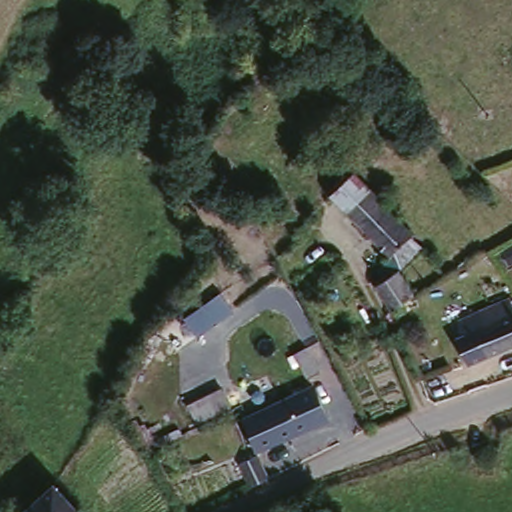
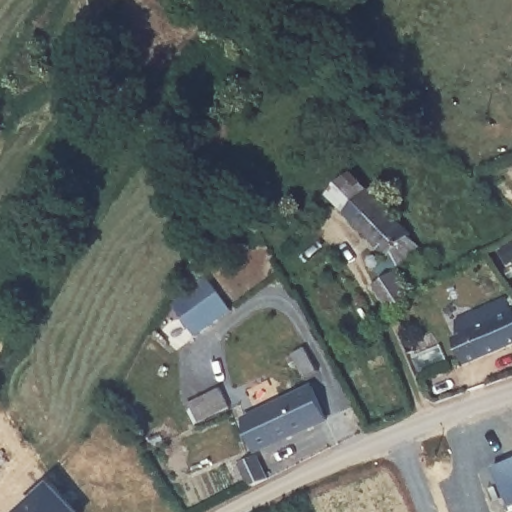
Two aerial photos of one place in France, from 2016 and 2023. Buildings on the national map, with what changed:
unchanged [(377,281),(386,273),(377,266),(390,253),(332,192),(355,170),(426,244),(399,268),(412,291),(392,302),(377,281)]
unchanged [(220,292),(233,310),(199,336),(186,317),(220,292)]
unchanged [(475,327),(485,324),(479,310),(509,299),(512,307),(512,348),(489,357),(475,327)]
unchanged [(304,347),(316,372),(305,378),(292,352),(304,347)]
unchanged [(224,387),(233,402),(220,410),(211,393),(224,387)]
unchanged [(308,387),(322,418),(252,450),(239,421),(308,387)]
unchanged [(235,465),(254,457),(264,480),(246,488),(235,465)]
new [(493,468),(512,460),(512,504),(509,506),(493,468)]
unchanged [(85,512),(29,512),(59,486),(85,512)]

